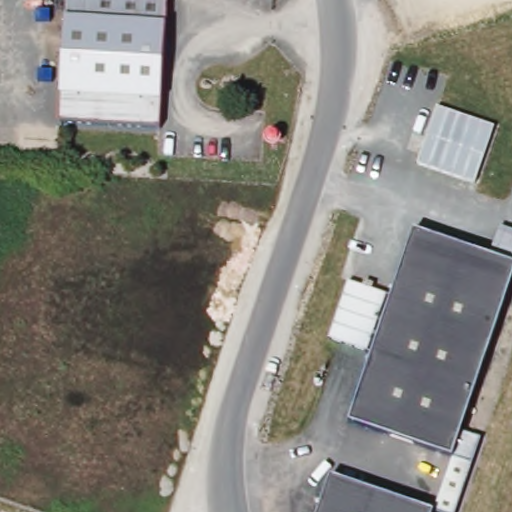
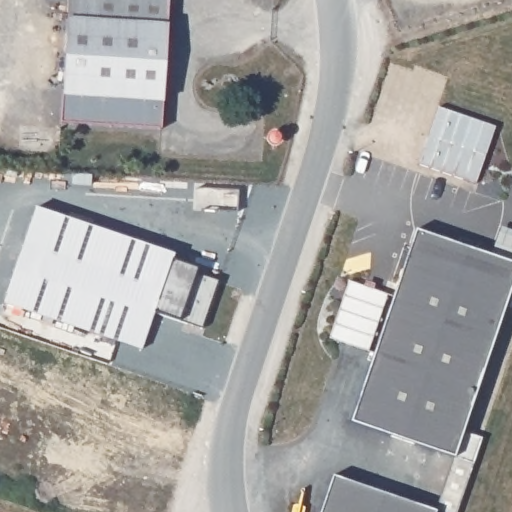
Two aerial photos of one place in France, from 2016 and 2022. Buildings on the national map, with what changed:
unchanged [(168,0),(167,25),(66,19),(67,0),(168,0)]
unchanged [(167,25),(161,130),(59,123),(66,19),(167,25)]
unchanged [(419,163),(437,108),(496,127),(475,184),(419,163)]
new [(35,208),(174,255),(172,260),(197,269),(196,273),(219,281),(202,330),(154,313),(142,350),(3,302),(35,208)]
unchanged [(501,228),(512,232),(512,266),(491,259),(501,228)]
unchanged [(455,460),(351,426),(383,329),(414,234),(512,266),(512,287),(487,364),(463,435),(482,441),(474,466),(455,460)]
unchanged [(432,509),(431,512),(315,512),(328,475),(432,509)]

